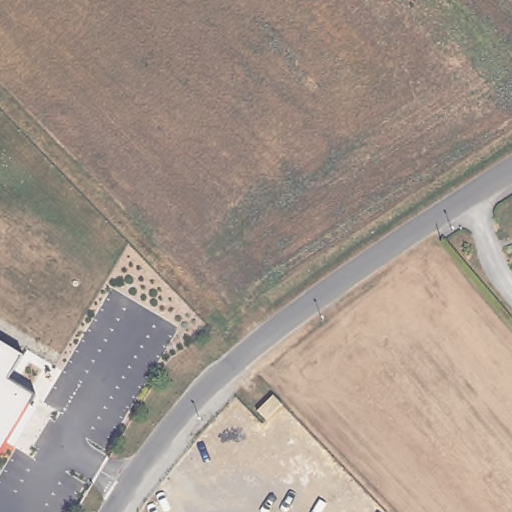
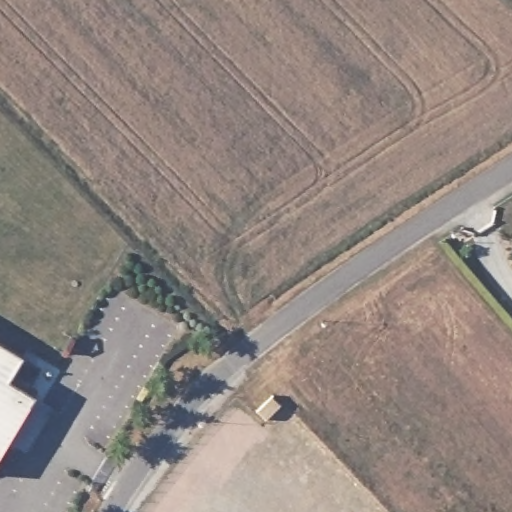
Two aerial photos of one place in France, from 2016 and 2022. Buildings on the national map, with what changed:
unchanged [(22,356),(8,380),(34,396),(0,453),(0,343),(22,356)]
unchanged [(262,401),(276,390),(287,401),(273,413),(262,401)]

